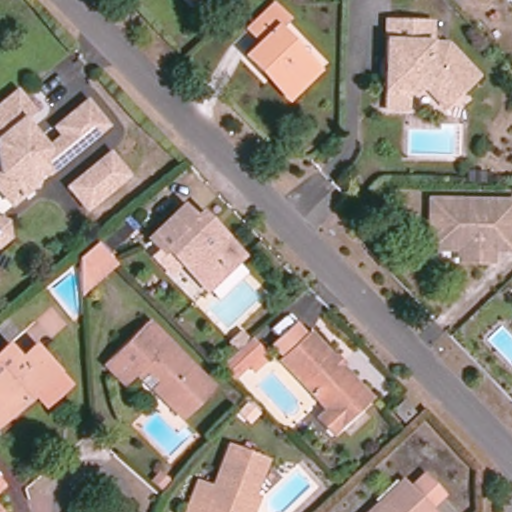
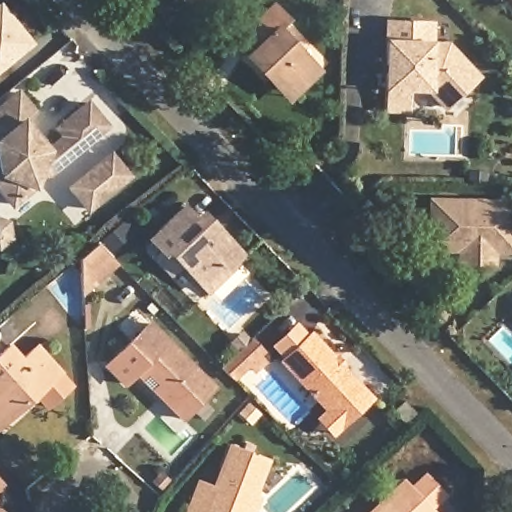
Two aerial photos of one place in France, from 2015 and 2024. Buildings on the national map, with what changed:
unchanged [(192,0),(204,0),(198,6),(192,0)]
unchanged [(274,0),(286,14),(277,23),(316,63),(291,87),(267,63),(263,67),(247,51),(262,37),(249,24),(274,0)]
unchanged [(512,0),(512,1),(511,0),(512,0)]
new [(0,72),(0,3),(34,44),(0,72)]
unchanged [(463,60),(478,75),(446,106),(431,91),(428,88),(386,88),(387,21),(430,23),(430,44),(448,44),(463,60)]
unchanged [(18,92),(33,111),(22,120),(28,127),(41,143),(47,149),(64,135),(57,128),(88,103),(107,125),(49,173),(38,176),(32,187),(10,205),(0,192),(0,174),(0,107),(18,92)]
unchanged [(94,175),(98,165),(111,154),(128,176),(88,209),(70,188),(83,178),(94,175)]
unchanged [(512,199),(511,244),(486,243),(485,255),(462,254),(462,243),(449,242),(450,217),(432,217),(433,198),(512,199)]
unchanged [(243,258),(208,291),(167,248),(162,252),(149,239),(183,207),(195,219),(210,235),(217,229),(243,258)]
unchanged [(0,243),(0,220),(5,222),(8,237),(0,243)]
unchanged [(109,254),(99,242),(102,239),(115,229),(124,241),(109,254)]
unchanged [(93,248),(113,268),(76,298),(74,263),(93,248)]
unchanged [(124,384),(106,366),(150,323),(214,389),(182,419),(167,404),(136,373),(124,384)]
unchanged [(308,414),(323,400),(277,352),(306,324),(365,388),(336,414),(322,429),(308,414)]
unchanged [(239,349),(232,342),(242,333),(249,340),(250,339),(262,353),(258,356),(265,363),(255,372),(248,364),(232,379),(220,367),(239,349)]
unchanged [(47,403),(33,388),(0,418),(0,350),(3,347),(16,361),(31,348),(52,371),(65,386),(47,403)]
unchanged [(404,424),(392,412),(403,401),(415,413),(404,424)]
unchanged [(199,484),(214,489),(230,447),(267,461),(247,512),(206,512),(188,512),(199,484)]
unchanged [(414,494),(429,481),(446,499),(432,512),(373,512),(403,483),(414,494)]

